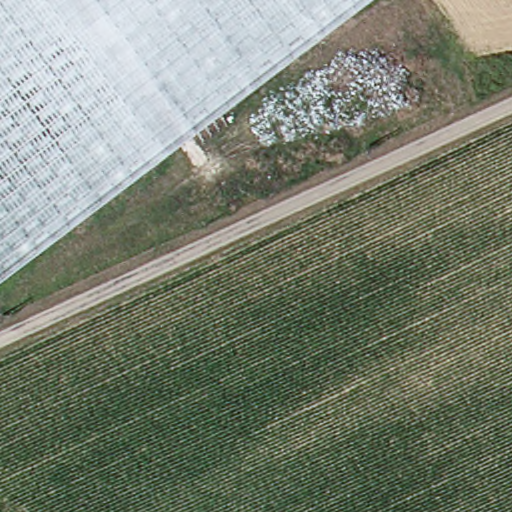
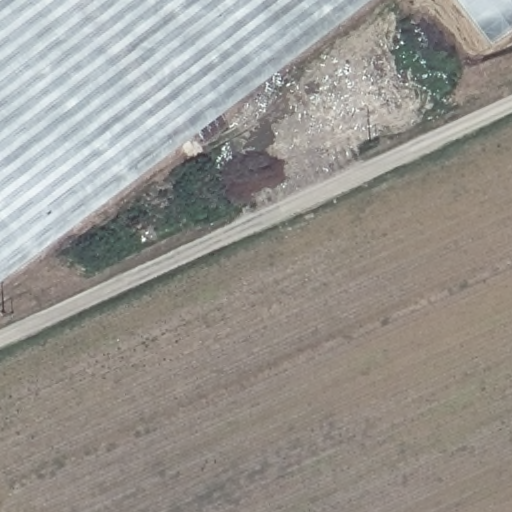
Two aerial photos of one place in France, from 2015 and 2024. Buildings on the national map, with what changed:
unchanged [(179,147),(0,282),(0,0),(64,0),(179,147)]
unchanged [(369,3),(195,135),(93,0),(366,0),(369,3)]
new [(458,0),(512,0),(512,28),(491,43),(458,0)]

